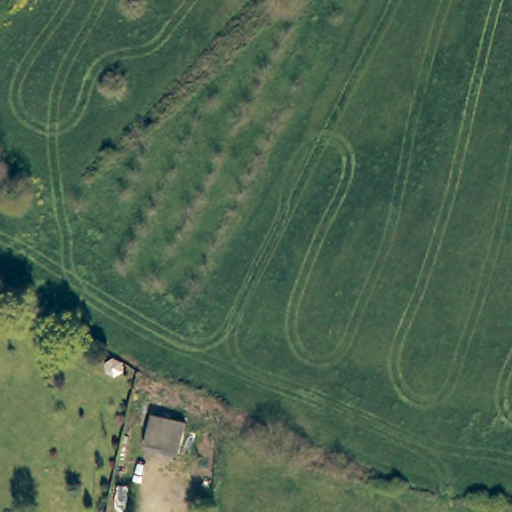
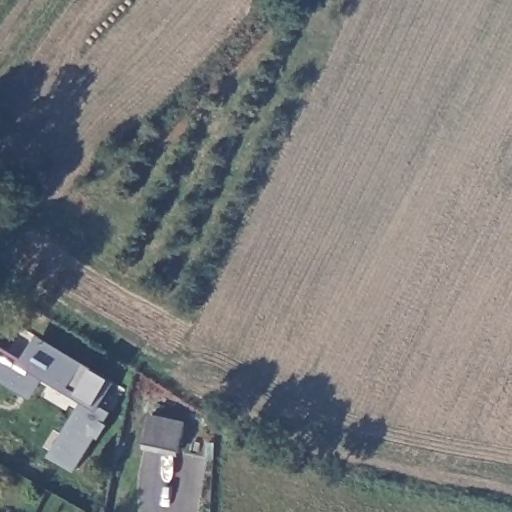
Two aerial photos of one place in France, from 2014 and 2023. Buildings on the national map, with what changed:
new [(23,360),(36,335),(93,370),(110,380),(115,384),(102,407),(111,413),(104,423),(109,426),(98,442),(94,439),(75,473),(48,457),(80,403),(43,381),(31,401),(0,382),(0,347),(23,360)]
unchanged [(153,424),(187,428),(182,457),(149,453),(153,424)]

